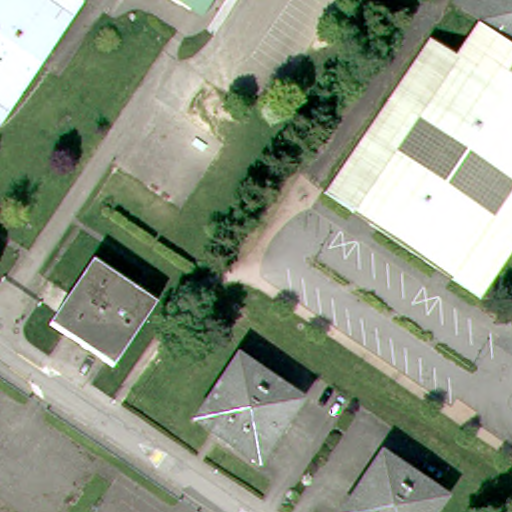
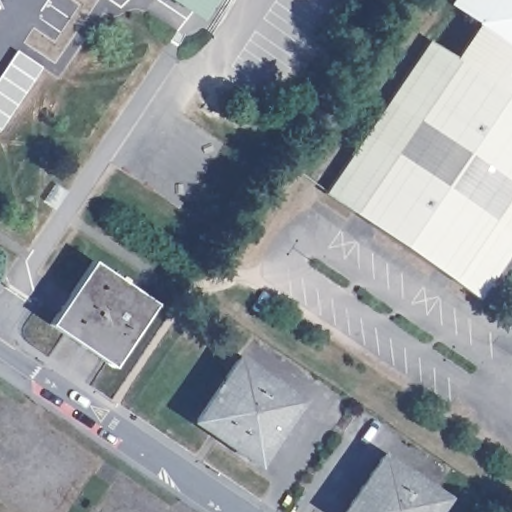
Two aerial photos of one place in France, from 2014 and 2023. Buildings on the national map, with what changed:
demolished [(0,119),(0,0),(72,0),(78,4),(0,119)]
unchanged [(192,4),(190,5),(187,5),(186,6),(185,6),(184,6),(183,6),(181,6),(181,5),(179,5),(178,5),(177,5),(176,4),(175,4),(174,4),(173,2),(169,0),(196,0),(194,1),(192,4)]
unchanged [(406,249),(320,190),(385,95),(424,37),(454,58),(479,20),(452,1),(453,0),(512,0),(512,243),(475,296),(406,249)]
new [(18,51),(43,67),(1,130),(0,129),(0,79),(18,51)]
unchanged [(153,300),(110,363),(48,320),(90,257),(153,300)]
demolished [(240,274),(249,281),(238,296),(229,289),(240,274)]
unchanged [(237,355),(299,397),(256,458),(194,416),(237,355)]
unchanged [(381,453),(442,495),(430,512),(340,512),(381,453)]

